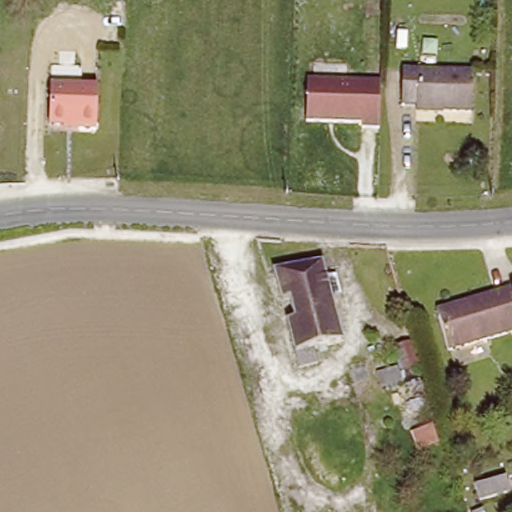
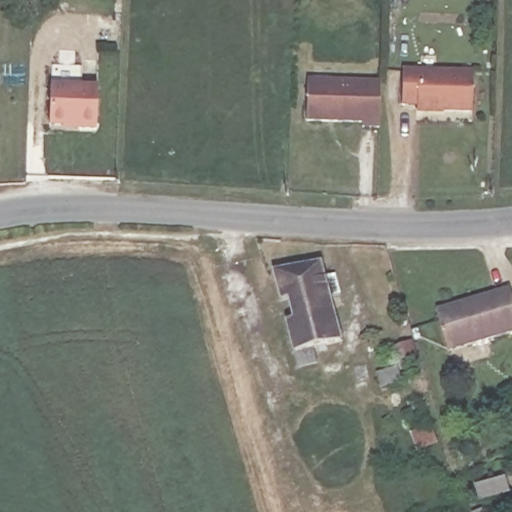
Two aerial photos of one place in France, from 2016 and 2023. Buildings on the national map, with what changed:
unchanged [(474,75),(473,110),(423,110),(423,103),(409,103),(409,72),(474,75)]
unchanged [(375,87),(376,130),(306,127),(308,83),(375,87)]
unchanged [(95,92),(95,132),(80,132),(80,128),(54,128),(55,91),(95,92)]
unchanged [(298,354),(284,321),(292,320),(288,300),(279,302),(273,274),(322,262),(326,278),(338,275),(342,293),(330,296),(341,343),(298,354)]
unchanged [(452,350),(442,320),(439,311),(459,305),(512,288),(512,332),(452,350)]
unchanged [(379,391),(374,375),(397,368),(392,349),(414,342),(422,367),(399,374),(402,385),(379,391)]
unchanged [(478,490),(508,480),(512,494),(512,496),(483,505),(478,490)]

